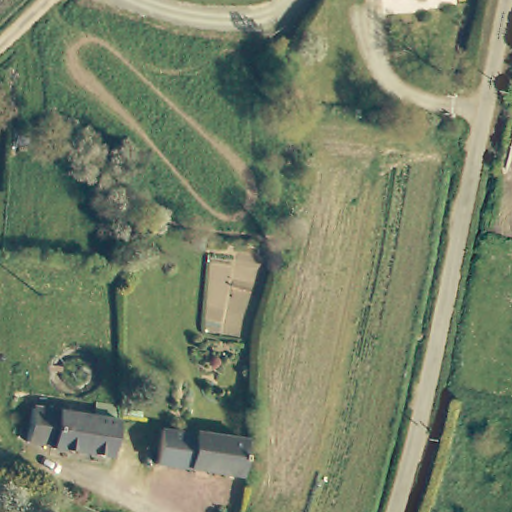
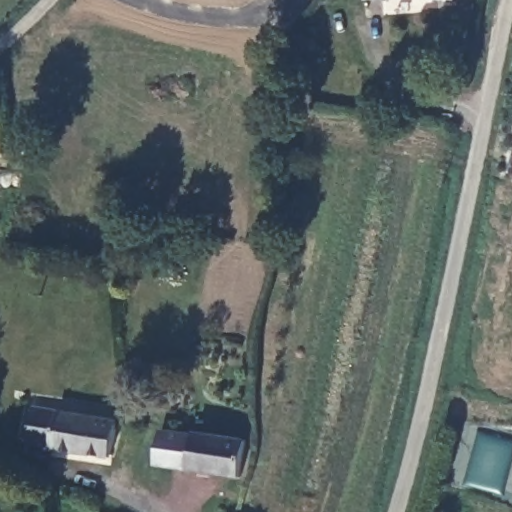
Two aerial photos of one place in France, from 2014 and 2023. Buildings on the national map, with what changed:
unchanged [(13,129),(27,128),(28,146),(13,147),(13,129)]
unchanged [(52,448),(52,446),(29,442),(34,407),(118,421),(111,458),(52,448)]
unchanged [(156,463),(162,428),(246,440),(240,476),(156,463)]

